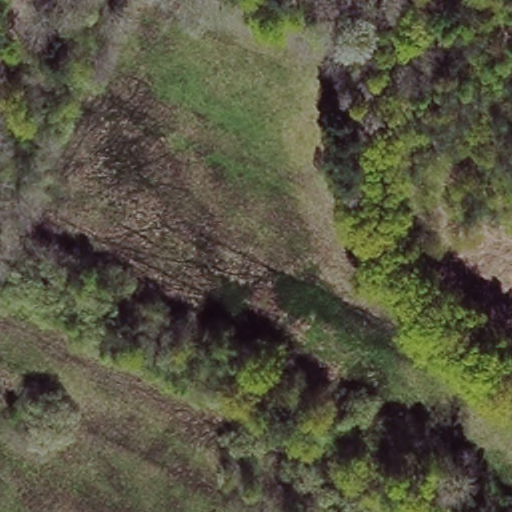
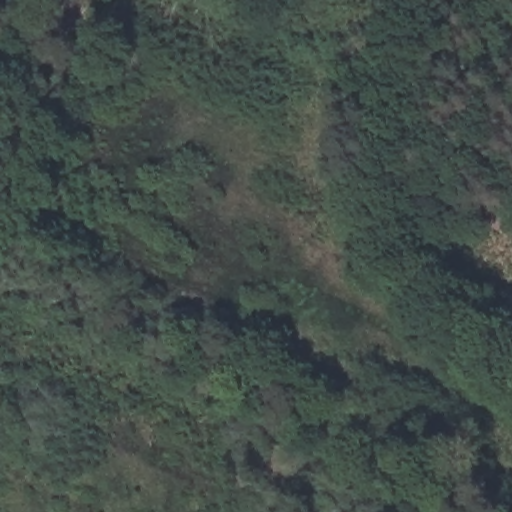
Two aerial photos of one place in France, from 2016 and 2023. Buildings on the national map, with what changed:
[]

